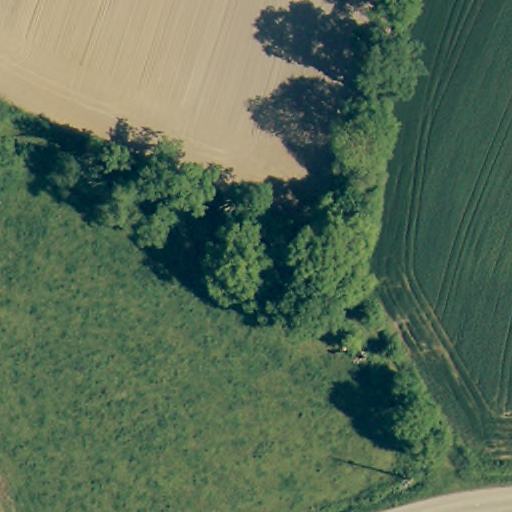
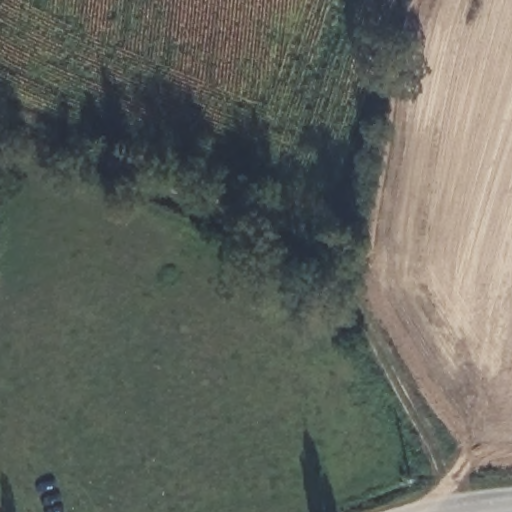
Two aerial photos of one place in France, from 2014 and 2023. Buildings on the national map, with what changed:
[]

